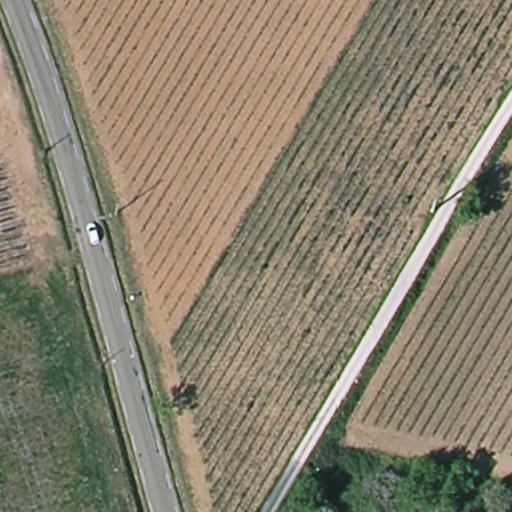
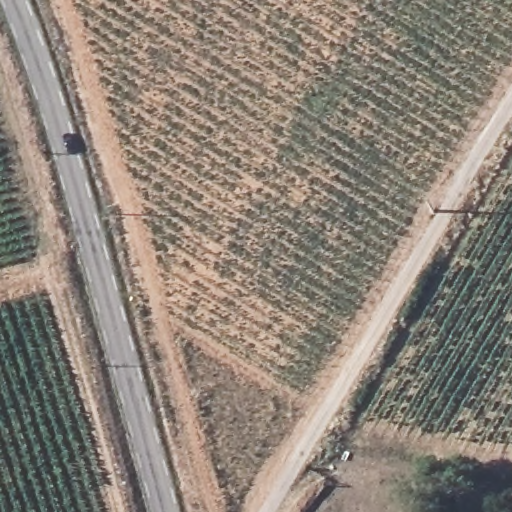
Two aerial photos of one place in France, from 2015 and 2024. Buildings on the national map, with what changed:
[]

